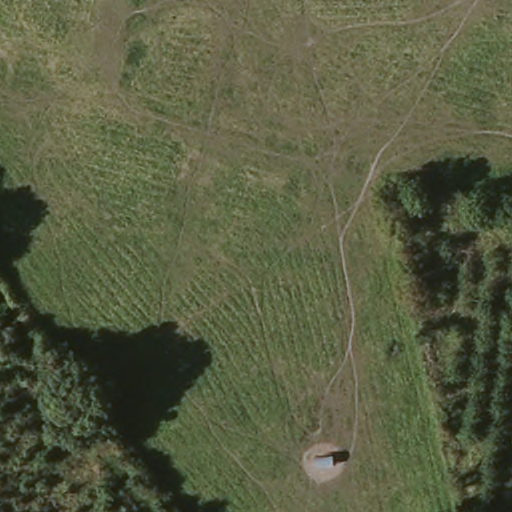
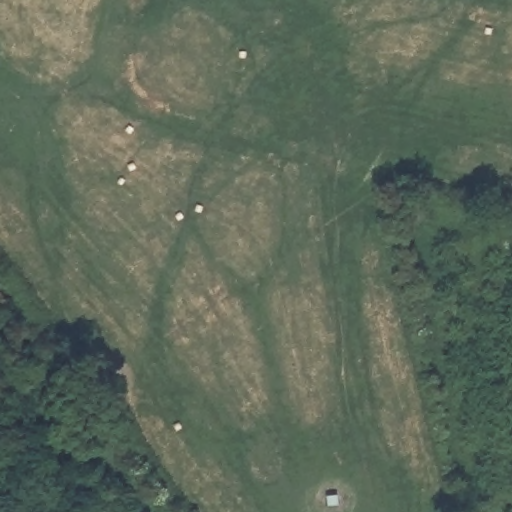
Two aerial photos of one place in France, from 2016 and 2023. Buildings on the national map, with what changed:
[]

